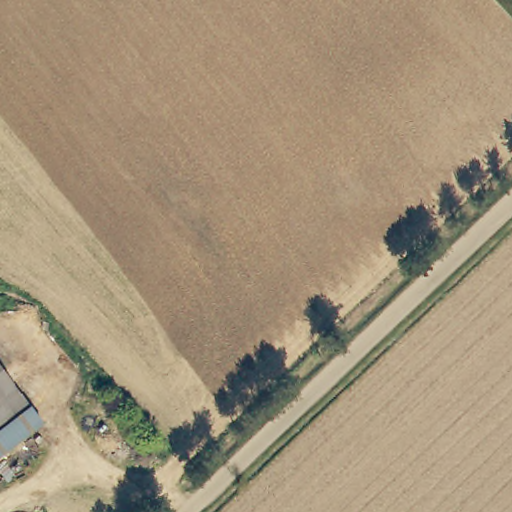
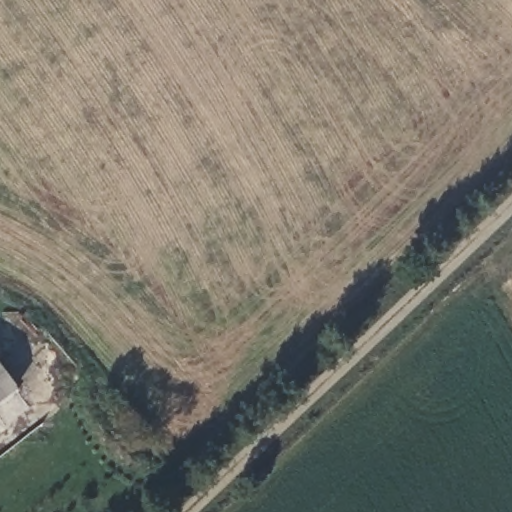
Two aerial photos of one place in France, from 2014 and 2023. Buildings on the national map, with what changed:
unchanged [(0,430),(0,379),(25,410),(0,430)]

